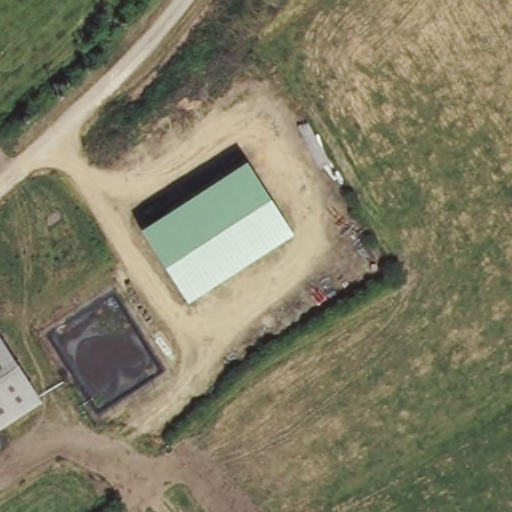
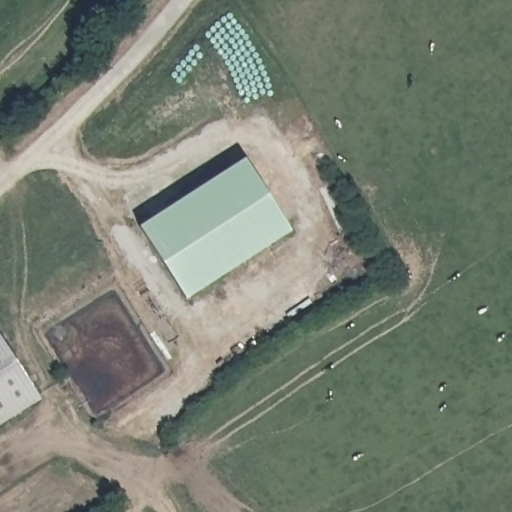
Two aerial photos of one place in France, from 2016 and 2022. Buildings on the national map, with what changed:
unchanged [(291,232),(185,301),(137,229),(245,160),(291,232)]
unchanged [(23,371),(40,397),(0,423),(0,336),(23,371)]

